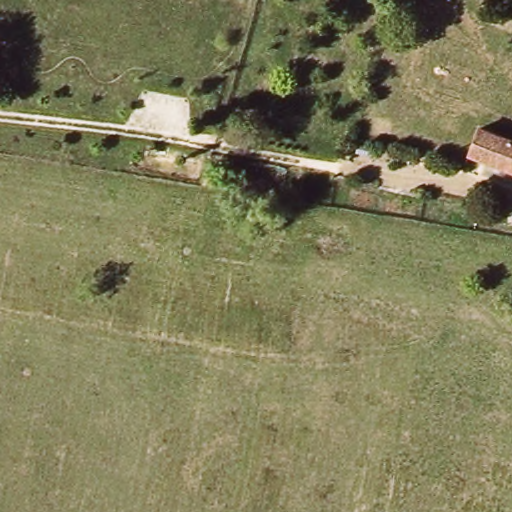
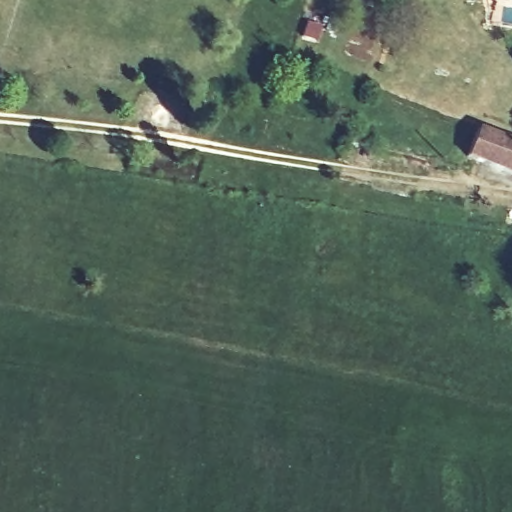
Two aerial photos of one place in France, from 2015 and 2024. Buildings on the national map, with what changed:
unchanged [(476,130),(512,142),(512,174),(467,157),(476,130)]

